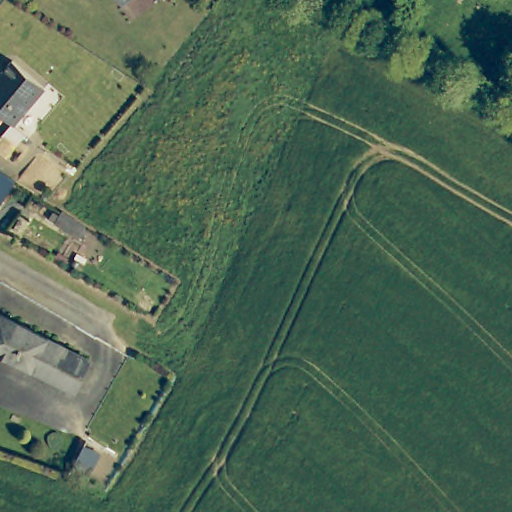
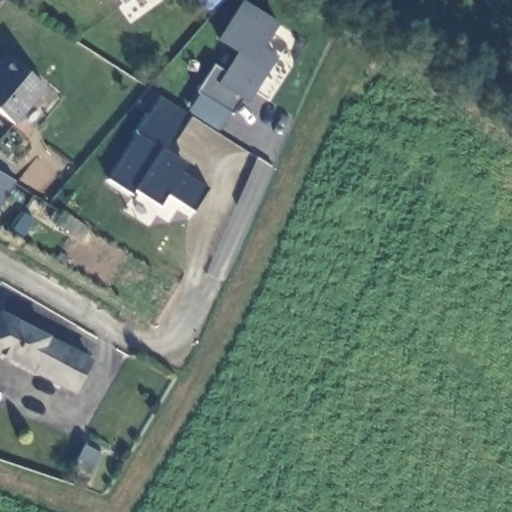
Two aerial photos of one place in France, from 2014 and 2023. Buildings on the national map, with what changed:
new [(265,47),(278,55),(247,103),(242,99),(233,115),(199,93),(215,65),(225,71),(236,52),(217,40),(242,0),(280,23),(265,47)]
unchanged [(42,86),(11,124),(0,114),(0,72),(10,60),(42,86)]
new [(169,151),(189,164),(183,174),(209,190),(194,211),(168,194),(160,206),(136,190),(132,195),(109,180),(161,96),(191,115),(169,151)]
new [(14,182),(1,206),(0,206),(0,173),(14,182)]
unchanged [(0,352),(0,314),(91,362),(73,392),(0,352)]
unchanged [(93,474),(71,464),(86,441),(101,450),(93,474)]

